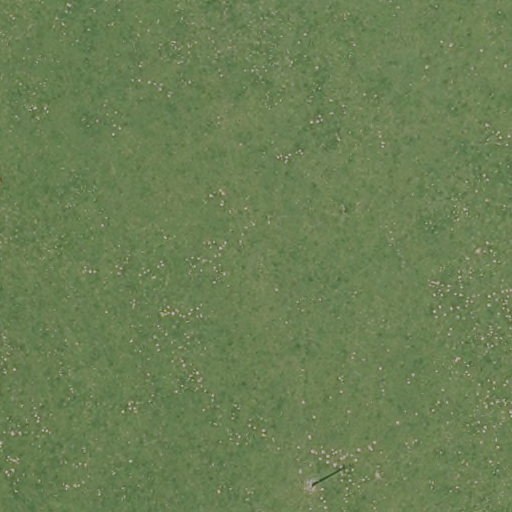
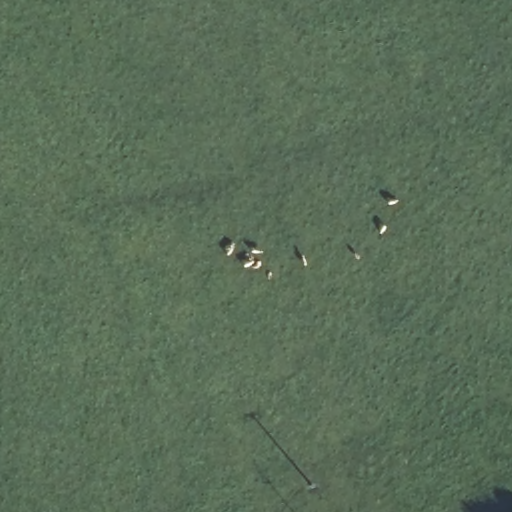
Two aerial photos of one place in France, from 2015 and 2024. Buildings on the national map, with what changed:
[]

